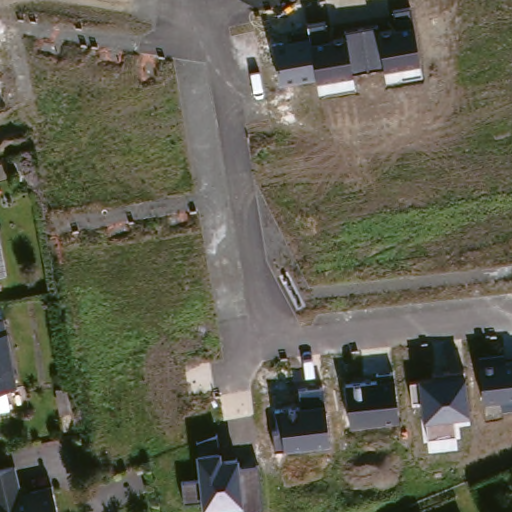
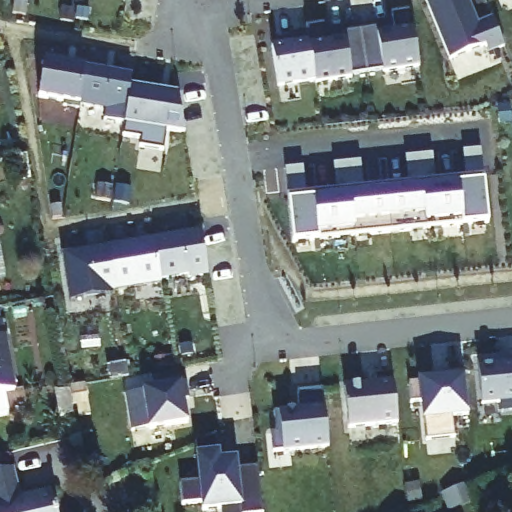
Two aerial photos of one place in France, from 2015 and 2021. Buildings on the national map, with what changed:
new [(480,18),(491,14),(505,46),(487,54),(483,47),(448,59),(427,0),(472,0),(480,18)]
unchanged [(420,65),(383,71),(382,66),(352,71),(353,77),(316,82),(315,78),(279,85),(272,47),(308,40),(305,28),(327,23),(330,37),(345,34),(375,28),(394,25),(392,10),(410,7),(420,65)]
new [(132,74),(131,84),(179,91),(185,132),(164,130),(162,148),(141,146),(142,139),(125,134),(126,123),(105,119),(105,108),(39,97),(45,60),(132,74)]
new [(337,200),(376,196),(375,189),(409,185),(410,193),(448,188),(447,181),(476,178),(474,153),(492,151),(495,176),(500,224),(299,245),(293,197),(291,172),(309,170),(312,195),(336,193),(337,200)]
new [(414,184),(411,159),(440,156),(442,182),(447,181),(448,188),(410,193),(409,185),(414,184)]
new [(341,192),(339,167),(367,164),(370,189),(375,189),(376,196),(337,200),(336,193),(341,192)]
new [(200,229),(209,275),(189,279),(187,276),(117,292),(117,297),(70,305),(60,254),(200,229)]
unchanged [(6,317),(19,387),(0,391),(0,318),(6,317)]
unchanged [(501,400),(485,403),(479,365),(512,362),(512,408),(501,409),(501,400)]
unchanged [(397,420),(350,425),(345,386),(378,382),(377,374),(393,372),(397,420)]
unchanged [(453,417),(455,435),(430,438),(428,418),(423,418),(420,399),(411,399),(409,380),(420,377),(463,372),(470,416),(453,417)]
new [(192,386),(196,402),(191,403),(196,426),(157,435),(149,395),(192,386)]
unchanged [(329,443),(275,449),(272,427),(277,426),(275,409),(298,406),(297,390),(324,386),(329,443)]
unchanged [(245,512),(224,512),(224,510),(207,512),(203,512),(201,497),(185,499),(183,479),(198,477),(195,452),(199,452),(196,439),(217,434),(220,452),(221,459),(236,458),(238,466),(260,465),(265,510),(245,512)]
unchanged [(8,465),(14,492),(50,483),(54,512),(0,512),(0,467),(8,465)]

